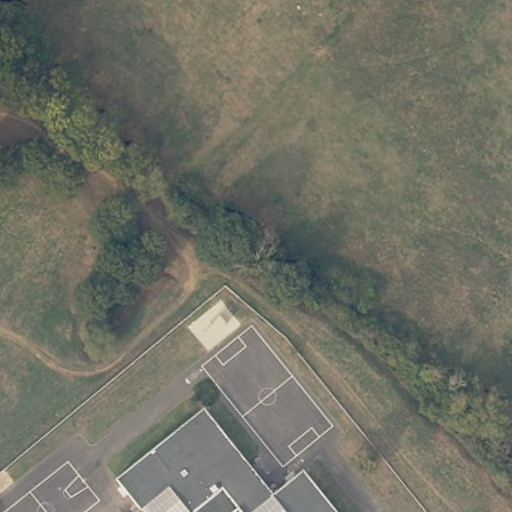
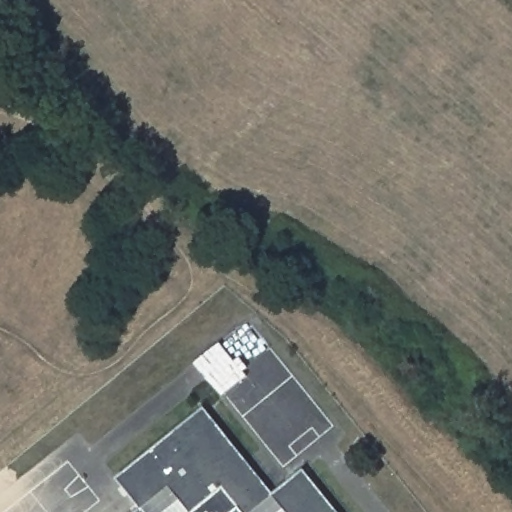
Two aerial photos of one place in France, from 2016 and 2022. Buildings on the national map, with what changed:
unchanged [(275,494),(303,473),(334,512),(288,512),(275,497),(254,512),(187,512),(189,510),(167,483),(142,503),(148,512),(130,512),(139,505),(117,475),(205,405),(275,494)]

